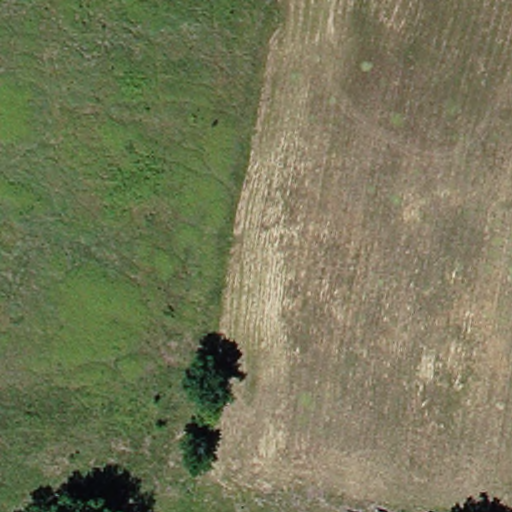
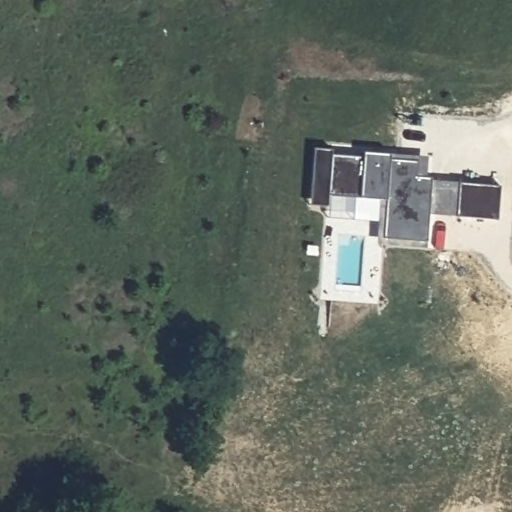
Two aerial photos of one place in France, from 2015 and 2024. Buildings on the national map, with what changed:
new [(456,216),(429,214),(426,241),(382,237),(385,199),(327,194),(326,205),(308,203),(313,147),(330,148),(330,153),(362,155),(363,150),(390,153),(390,157),(417,160),(432,161),(431,177),(432,180),(459,182),(501,185),(498,220),(456,216)]

